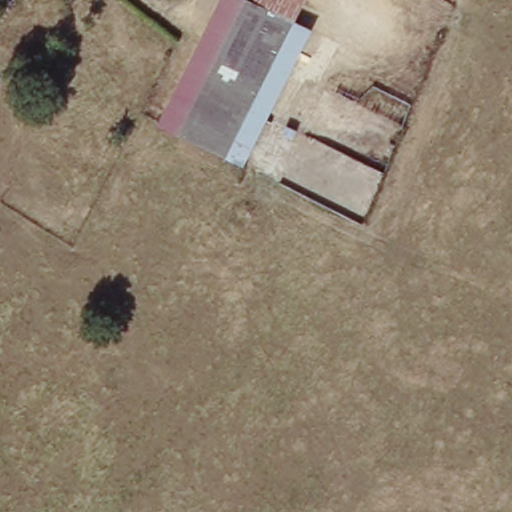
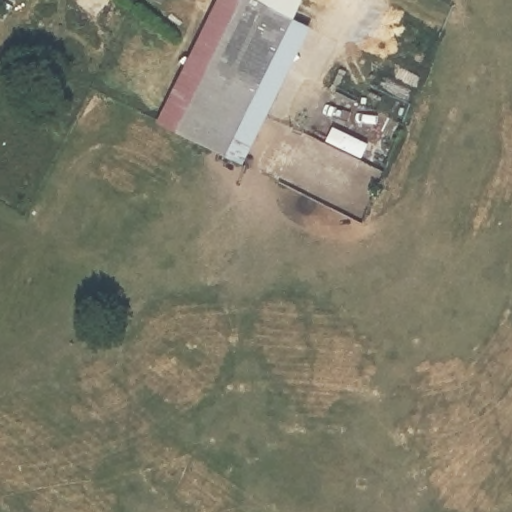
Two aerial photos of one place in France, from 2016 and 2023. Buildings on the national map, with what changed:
unchanged [(244,0),(252,3),(201,108),(177,96),(227,0),(244,0)]
unchanged [(310,0),(303,14),(296,27),(252,3),(254,0),(310,0)]
unchanged [(315,38),(263,138),(222,117),(201,108),(252,3),(296,27),(315,38)]
unchanged [(248,168),(162,125),(177,96),(201,108),(222,117),(263,138),(248,168)]

